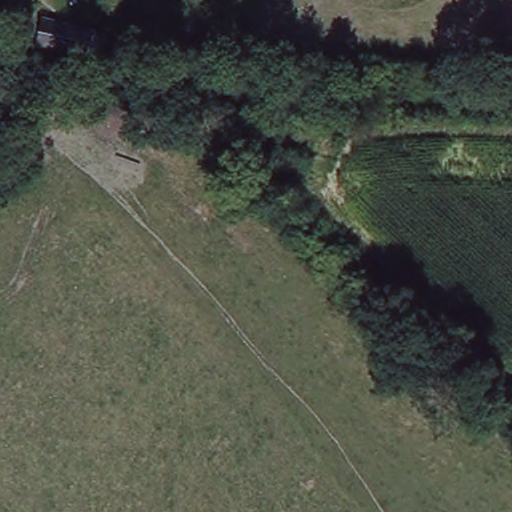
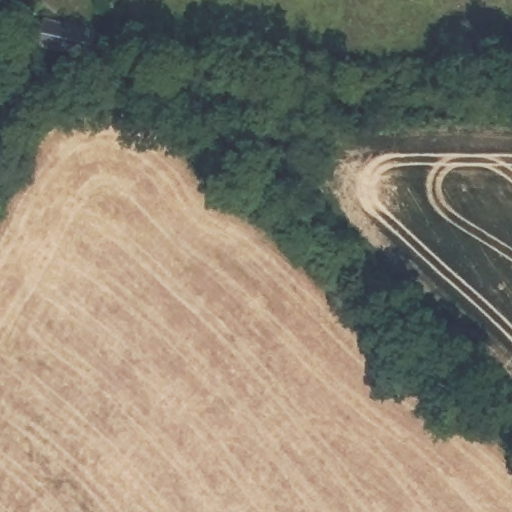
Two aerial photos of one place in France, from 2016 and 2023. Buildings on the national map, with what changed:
unchanged [(43,45),(52,18),(100,34),(93,59),(43,45)]

